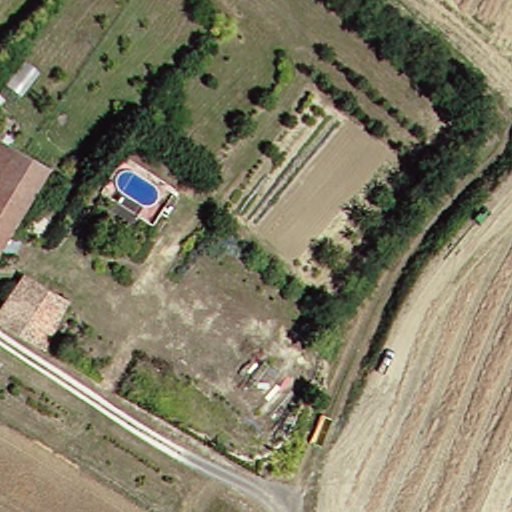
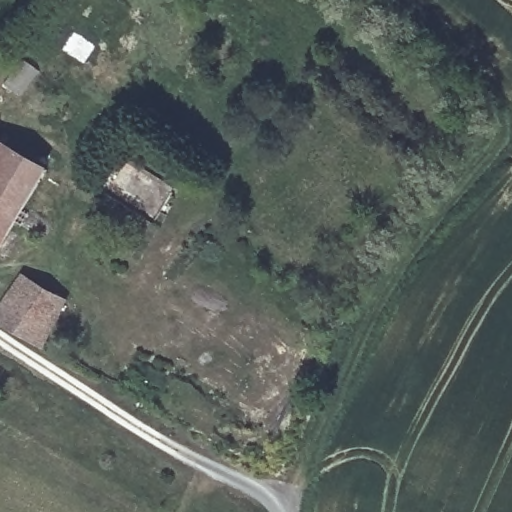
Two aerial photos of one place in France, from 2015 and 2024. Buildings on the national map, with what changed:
unchanged [(2,141),(49,171),(26,203),(40,215),(11,261),(0,253),(0,127),(8,132),(2,141)]
unchanged [(35,276),(74,301),(48,344),(8,317),(35,276)]

